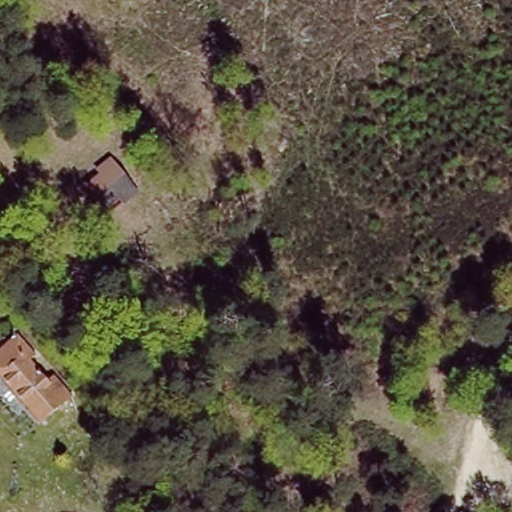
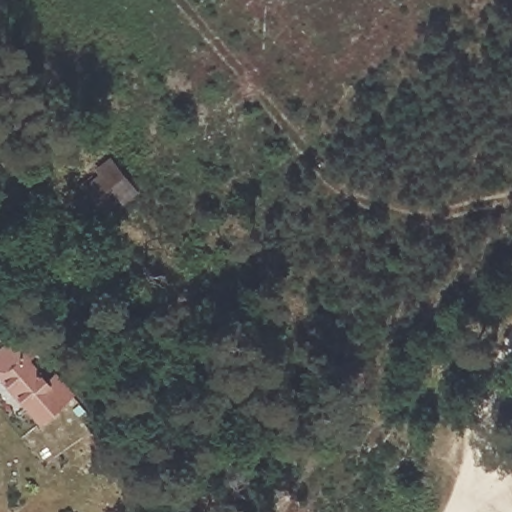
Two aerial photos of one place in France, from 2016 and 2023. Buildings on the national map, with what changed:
unchanged [(106,164),(137,193),(110,222),(80,194),(106,164)]
unchanged [(77,394),(64,406),(42,427),(0,383),(0,349),(5,344),(22,328),(40,346),(22,362),(47,389),(60,377),(77,394)]

